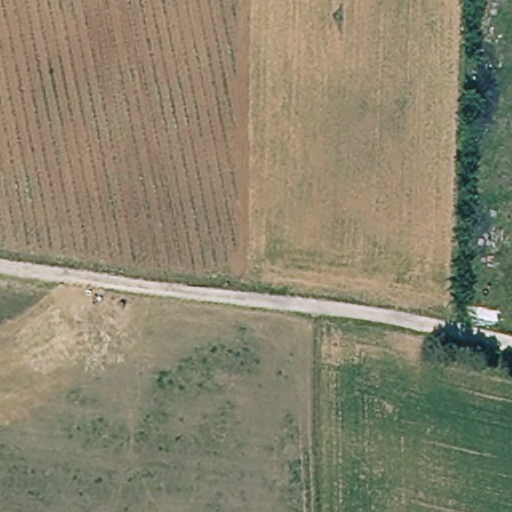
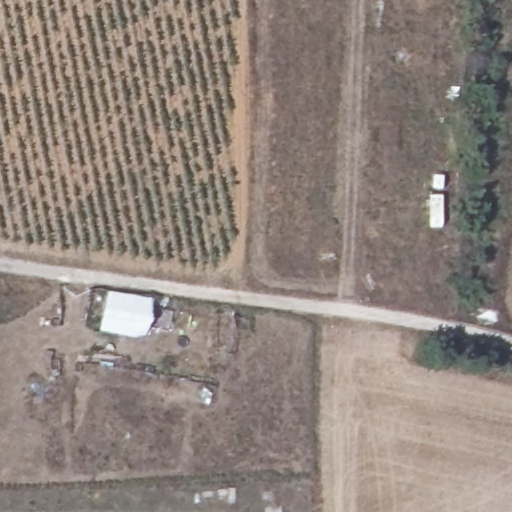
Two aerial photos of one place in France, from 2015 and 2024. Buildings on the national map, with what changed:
new [(151,299),(144,337),(101,330),(107,292),(151,299)]

